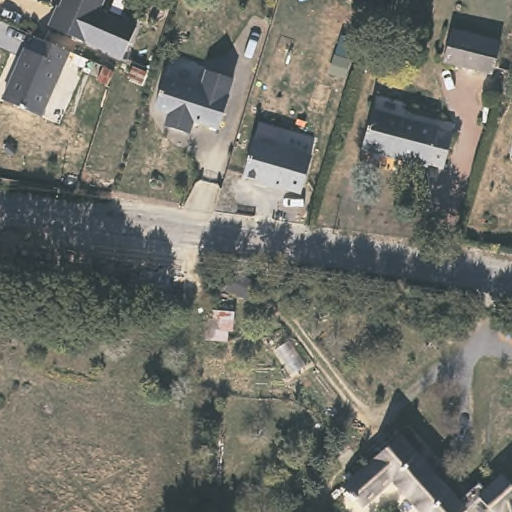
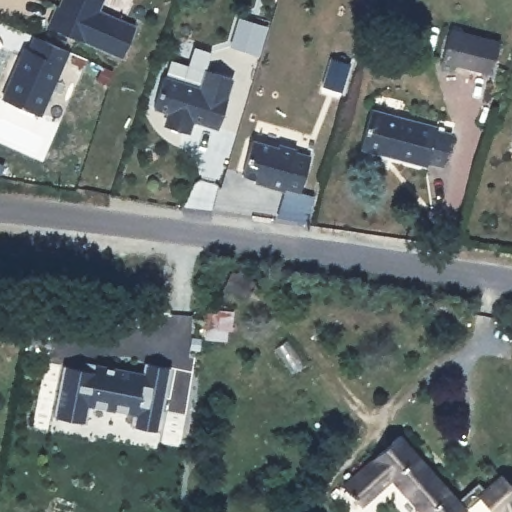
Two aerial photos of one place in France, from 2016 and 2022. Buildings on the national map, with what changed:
unchanged [(64,5),(70,8),(73,2),(72,0),(111,0),(111,1),(106,11),(142,29),(127,60),(54,25),(64,5)]
unchanged [(266,0),(276,0),(275,3),(266,0)]
unchanged [(496,42),(489,72),(440,58),(448,29),(496,42)]
unchanged [(65,47),(35,110),(0,93),(0,85),(20,42),(26,45),(32,31),(65,47)]
unchanged [(234,75),(228,93),(229,94),(219,124),(201,119),(202,115),(195,112),(191,124),(183,127),(170,122),(167,115),(169,108),(155,104),(165,72),(201,84),(207,66),(234,75)]
unchanged [(442,123),(441,127),(456,133),(446,167),(431,161),(429,166),(365,146),(377,105),(442,123)]
unchanged [(253,142),(278,150),(279,147),(296,151),(296,154),(311,158),(300,195),(285,190),(284,192),(266,187),(267,184),(243,177),(253,142)]
unchanged [(214,302),(242,305),(241,338),(208,333),(214,302)]
new [(64,364),(96,370),(97,362),(145,372),(147,362),(172,367),(164,410),(166,410),(162,432),(132,426),(133,413),(88,406),(85,423),(54,417),(64,364)]
unchanged [(466,492),(473,500),(460,512),(429,512),(396,478),(365,503),(343,475),(406,428),(466,492)]
unchanged [(512,480),(512,512),(490,512),(478,497),(473,500),(466,492),(499,463),(512,480)]

